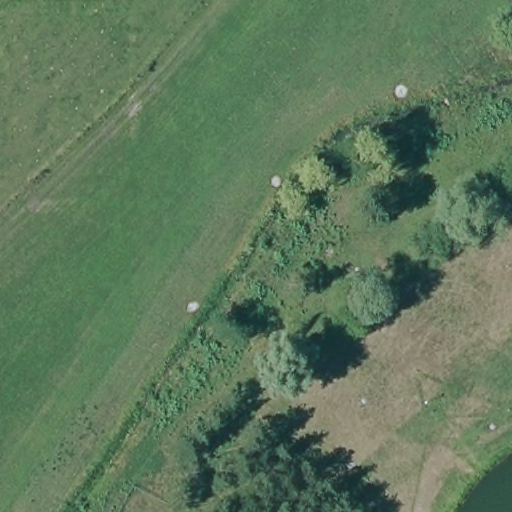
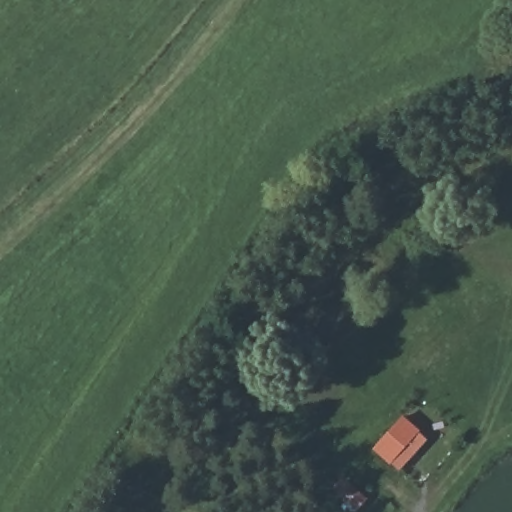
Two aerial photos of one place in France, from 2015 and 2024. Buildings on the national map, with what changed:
new [(400,472),(390,465),(372,450),(403,416),(418,432),(429,441),(400,472)]

